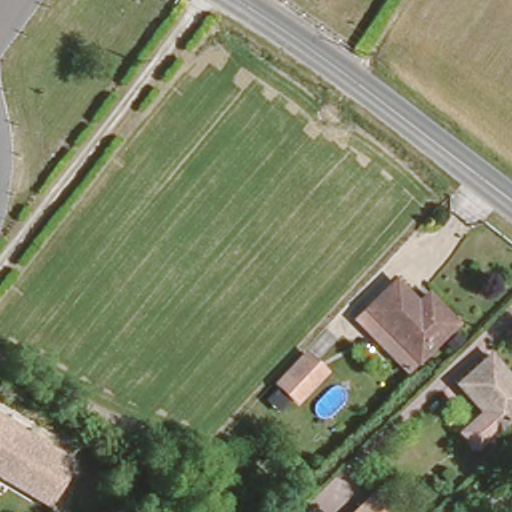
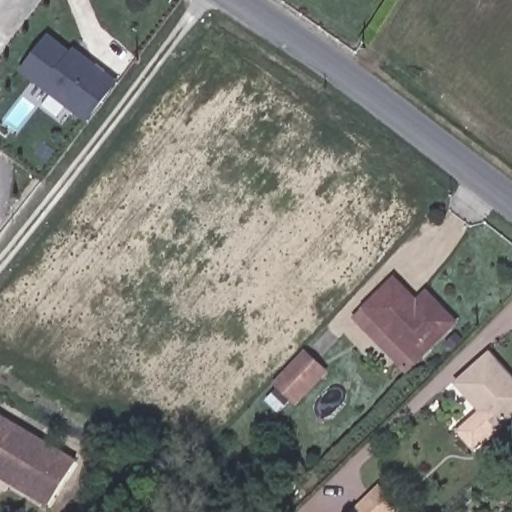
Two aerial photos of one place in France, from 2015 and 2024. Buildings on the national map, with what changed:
new [(89,122),(76,113),(22,71),(49,36),(71,54),(75,50),(93,65),(106,74),(117,83),(89,122)]
unchanged [(421,298),(431,289),(440,298),(460,317),(420,356),(369,305),(398,275),(421,298)]
unchanged [(410,367),(358,315),(369,305),(420,356),(410,367)]
unchanged [(323,374),(295,402),(277,385),(293,367),(300,360),(305,355),(323,374)]
unchanged [(473,449),(458,432),(481,412),(456,384),(490,355),(512,381),(512,415),(473,449)]
unchanged [(50,505),(0,476),(0,419),(75,464),(50,505)]
unchanged [(398,509),(395,512),(356,512),(380,489),(398,509)]

